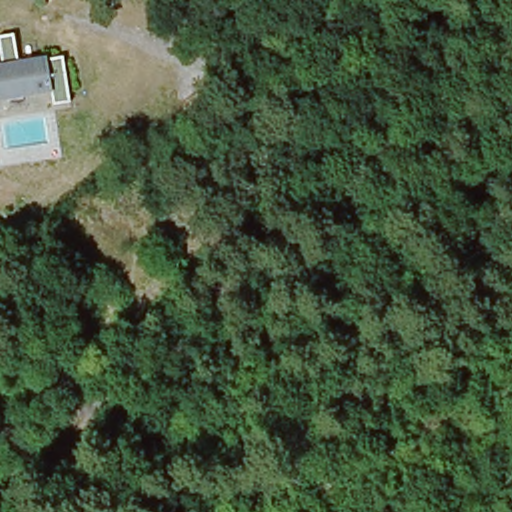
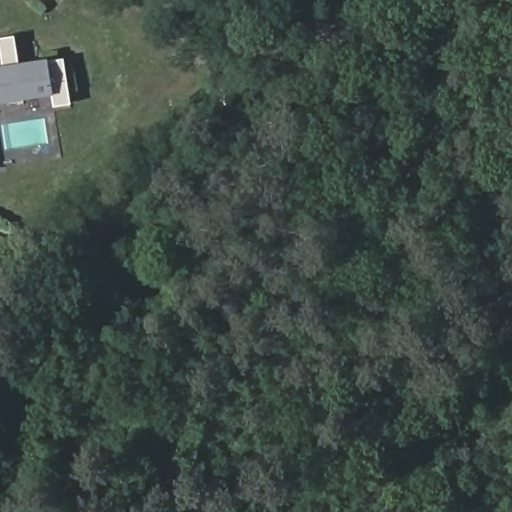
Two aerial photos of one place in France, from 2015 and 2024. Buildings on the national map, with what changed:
unchanged [(70,103),(50,105),(48,92),(0,99),(0,35),(13,32),(17,58),(64,55),(70,103)]

